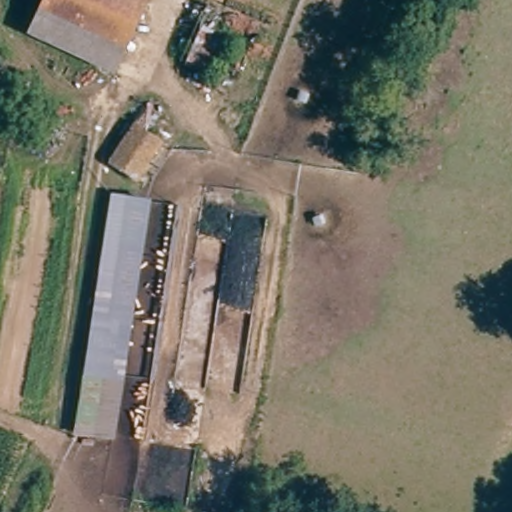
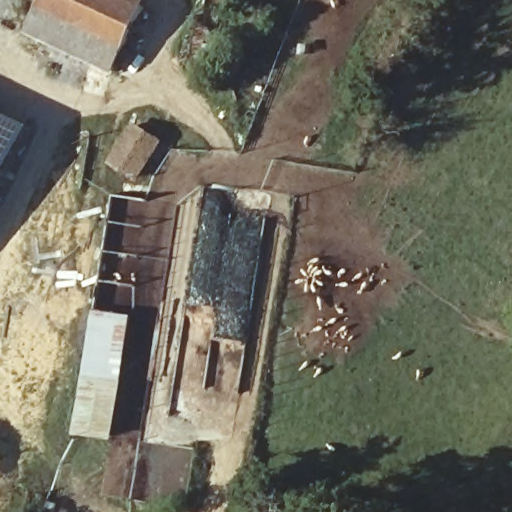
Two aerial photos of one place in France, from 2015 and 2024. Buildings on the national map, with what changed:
unchanged [(145,8),(113,71),(53,40),(31,30),(46,0),(146,0),(145,8)]
unchanged [(181,60),(192,39),(183,35),(194,14),(238,41),(221,79),(181,60)]
new [(30,126),(0,192),(0,112),(30,126)]
unchanged [(143,159),(133,176),(109,161),(118,146),(135,119),(159,134),(143,159)]
unchanged [(115,441),(74,436),(111,194),(152,200),(115,441)]

